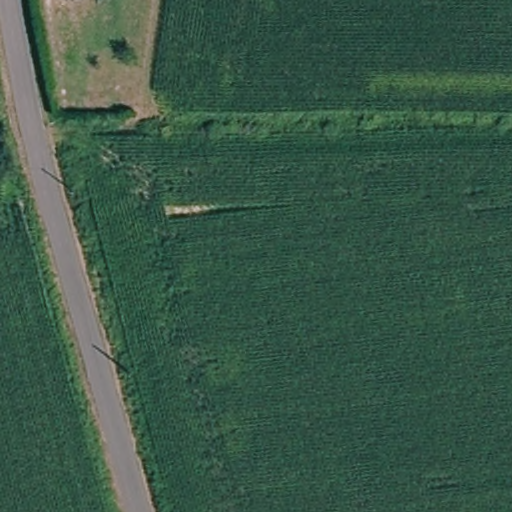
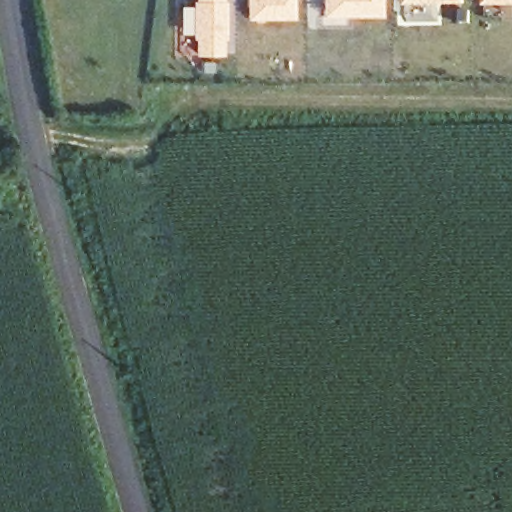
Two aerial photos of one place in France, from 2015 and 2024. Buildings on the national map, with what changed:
new [(193,40),(194,2),(196,2),(196,0),(227,0),(227,3),(229,3),(228,40),(225,41),(225,56),(196,56),(197,40),(193,40)]
new [(248,21),(248,0),(297,0),(297,20),(248,21)]
new [(323,0),(382,0),(380,14),(322,17),(323,0)]
new [(407,2),(406,0),(464,0),(462,1),(407,2)]
new [(491,0),(512,0),(512,3),(491,0)]

